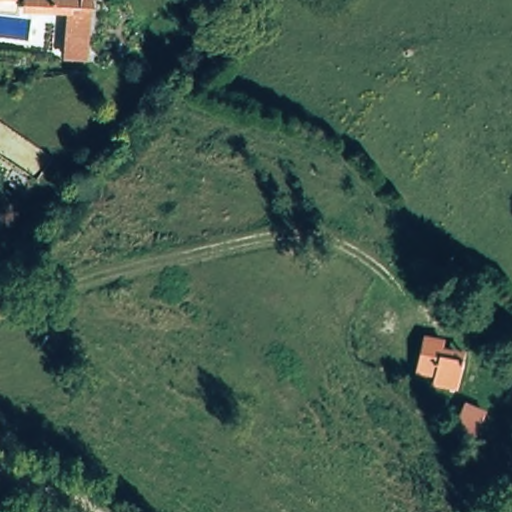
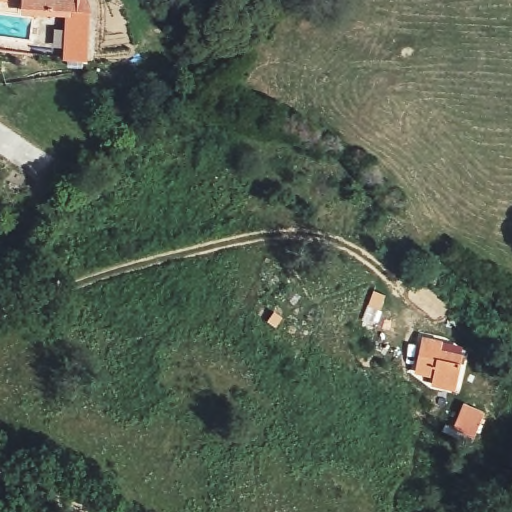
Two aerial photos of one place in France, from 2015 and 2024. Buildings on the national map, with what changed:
unchanged [(95,15),(93,68),(69,64),(71,23),(28,21),(28,6),(10,4),(0,4),(0,0),(93,0),(95,3),(95,15)]
unchanged [(449,345),(447,355),(466,357),(462,396),(438,392),(438,383),(422,379),(429,342),(449,345)]
unchanged [(486,412),(473,444),(451,435),(463,404),(486,412)]

